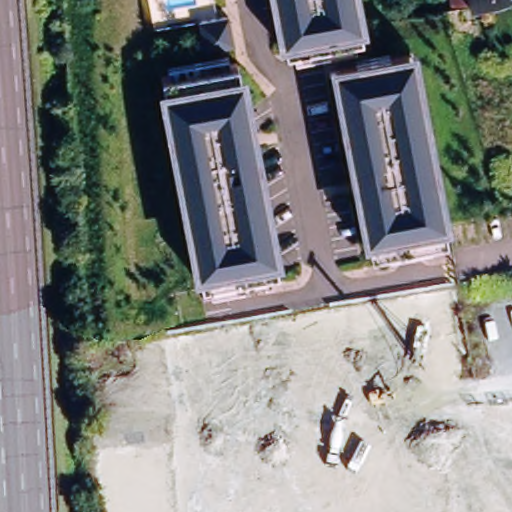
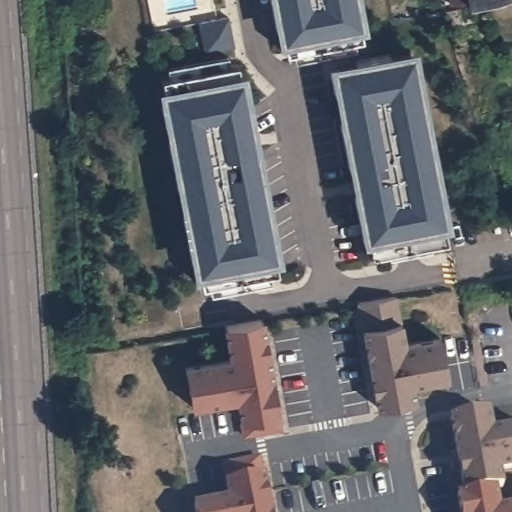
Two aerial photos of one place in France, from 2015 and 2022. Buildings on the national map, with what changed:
unchanged [(365,27),(360,29),(361,37),(354,39),(355,49),(296,60),(295,50),(286,51),(285,44),(279,45),(270,0),(360,0),(365,27)]
unchanged [(475,9),(446,14),(446,9),(427,12),(425,0),(512,0),(512,1),(475,9)]
unchanged [(413,48),(448,226),(444,227),(446,240),(430,243),(431,251),(390,258),(388,251),(372,254),(369,241),(364,242),(330,63),(413,48)]
unchanged [(165,86),(163,78),(169,77),(167,66),(227,56),(230,66),(237,64),(238,72),(243,71),(280,259),(273,260),(275,271),(270,272),(271,282),(210,293),(208,284),(202,285),(200,274),(193,275),(157,88),(165,86)]
new [(392,295),(400,343),(436,336),(443,375),(408,382),(412,396),(372,404),(357,301),(392,295)]
new [(262,316),(275,423),(238,428),(235,393),(190,399),(185,363),(228,355),(225,322),(262,316)]
new [(490,428),(512,426),(512,468),(496,471),(498,485),(490,487),(496,508),(512,506),(512,512),(458,512),(455,495),(462,492),(449,417),(487,409),(490,428)]
new [(261,487),(303,480),(307,502),(268,509),(269,512),(193,512),(191,503),(225,498),(220,460),(256,456),(261,487)]
demolished [(234,512),(230,493),(305,479),(310,505),(266,512),(234,512)]
demolished [(311,512),(266,512),(310,505),(311,512)]

